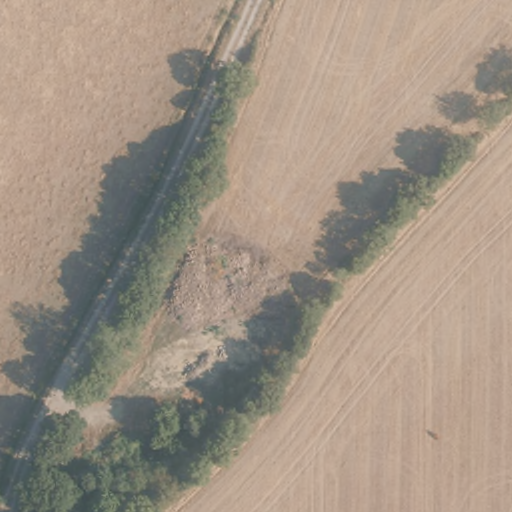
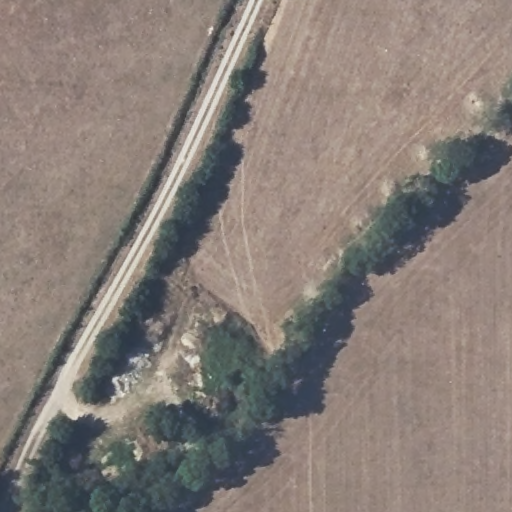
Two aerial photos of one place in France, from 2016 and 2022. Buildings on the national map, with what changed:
[]

